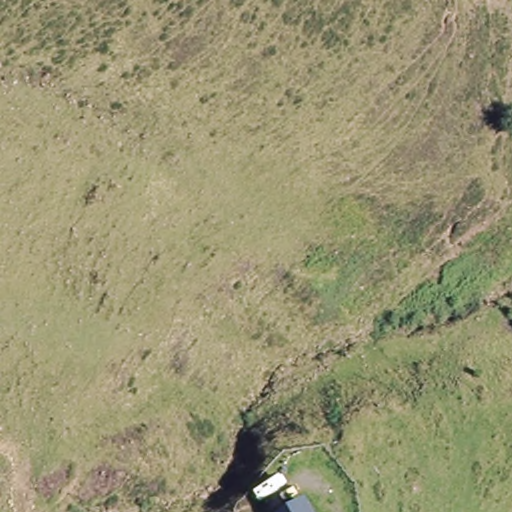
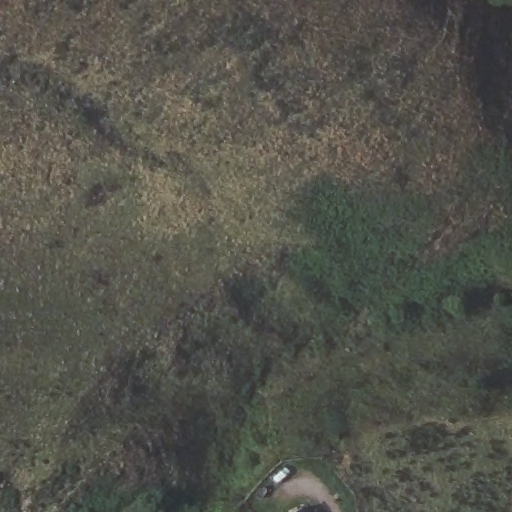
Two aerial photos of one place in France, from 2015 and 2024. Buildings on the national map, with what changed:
unchanged [(293,512),(303,506),(307,512),(293,512)]

